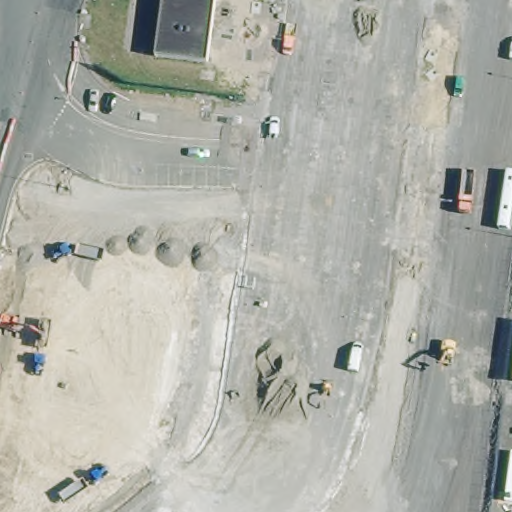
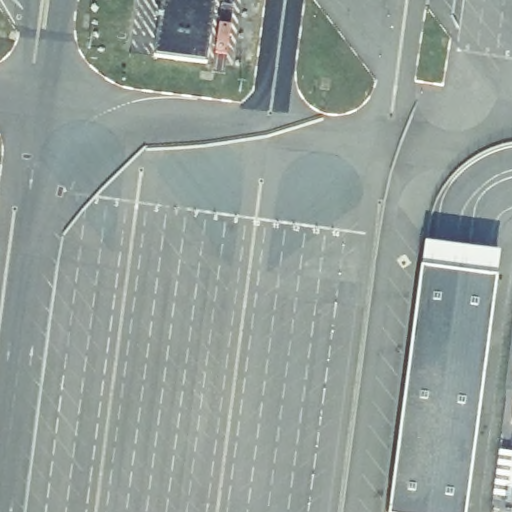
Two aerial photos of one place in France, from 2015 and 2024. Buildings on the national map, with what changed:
unchanged [(216,0),(207,63),(155,56),(162,0),(216,0)]
new [(500,258),(467,512),(385,512),(421,251),(500,258)]

